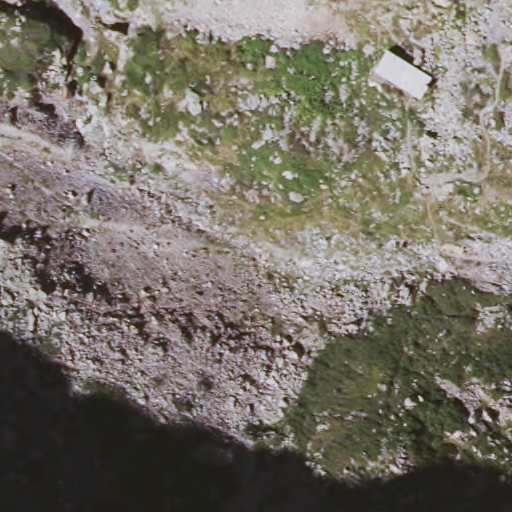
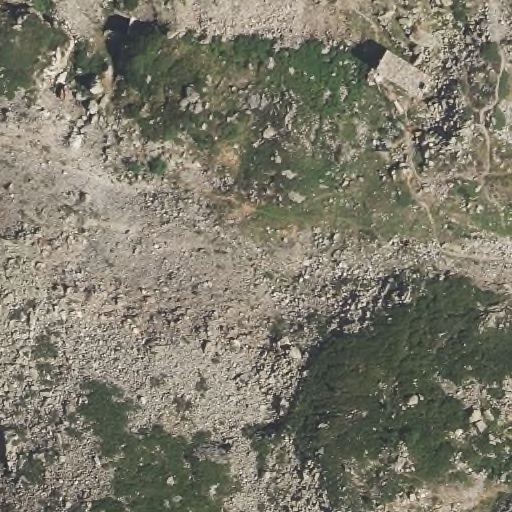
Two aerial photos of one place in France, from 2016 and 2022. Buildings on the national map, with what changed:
unchanged [(395,89),(370,74),(386,48),(432,76),(417,102),(395,89)]

